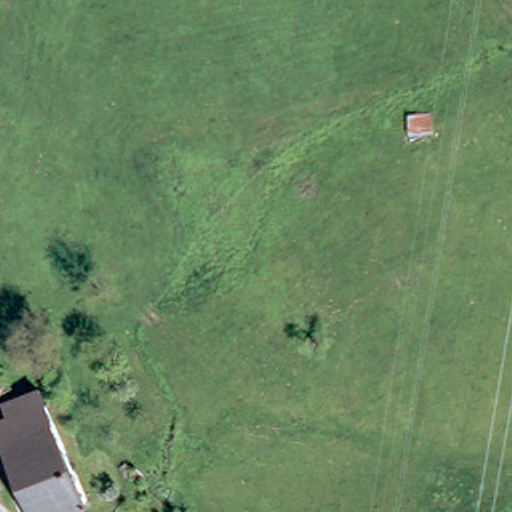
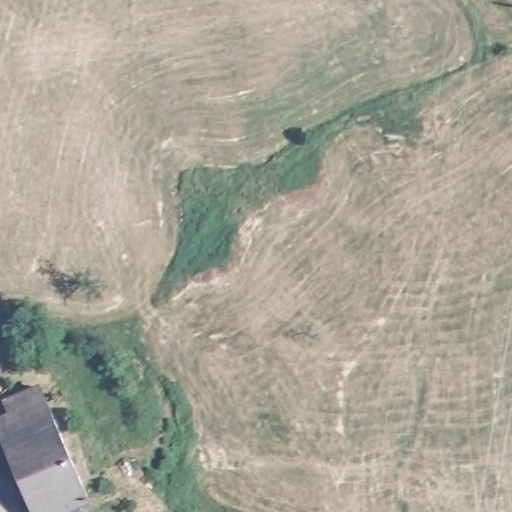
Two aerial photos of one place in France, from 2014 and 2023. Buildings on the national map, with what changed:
unchanged [(0,437),(0,425),(11,420),(5,406),(45,390),(52,404),(91,504),(73,512),(33,512),(0,437)]

